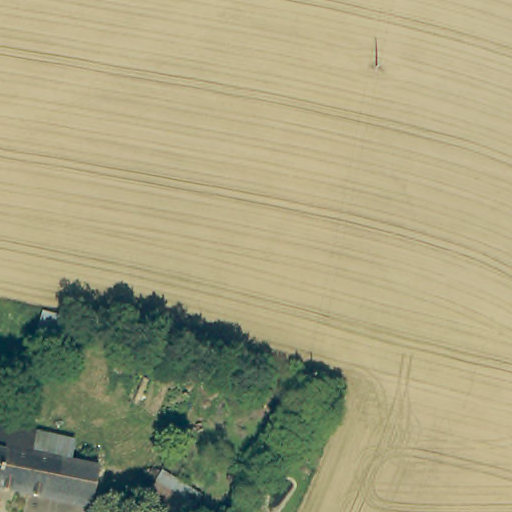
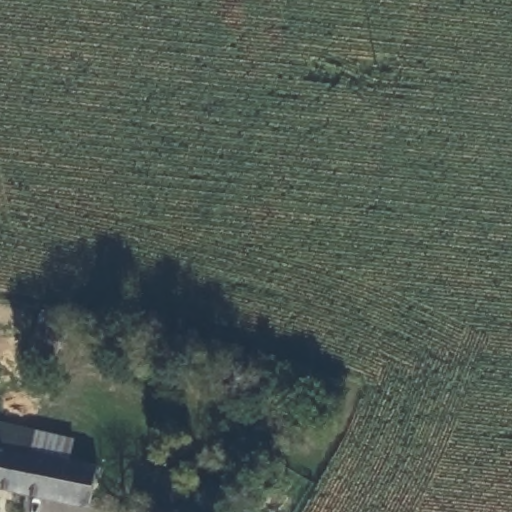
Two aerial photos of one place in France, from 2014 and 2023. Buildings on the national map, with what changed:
unchanged [(62,356),(31,348),(40,308),(72,317),(62,356)]
unchanged [(0,489),(0,428),(33,435),(29,455),(97,466),(88,505),(0,489)]
unchanged [(171,472),(201,490),(188,512),(168,512),(153,503),(171,472)]

